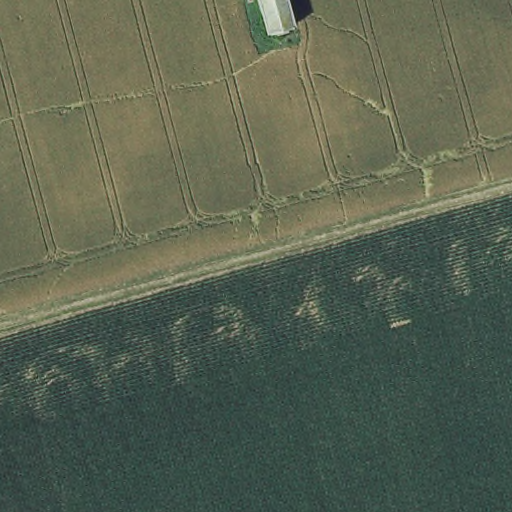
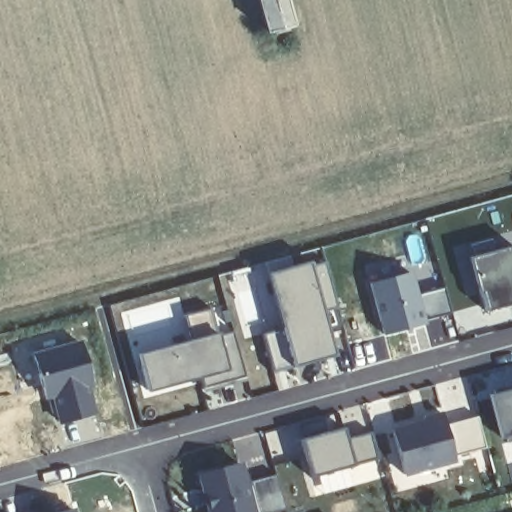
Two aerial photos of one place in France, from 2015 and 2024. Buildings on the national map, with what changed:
unchanged [(289,28),(265,34),(255,0),(281,0),(289,28)]
new [(483,310),(469,257),(512,247),(512,303),(483,310)]
new [(337,354),(275,368),(265,333),(285,329),(270,271),(312,260),(337,354)]
new [(414,267),(420,293),(445,286),(453,319),(384,338),(368,280),(414,267)]
new [(194,338),(186,314),(214,306),(220,332),(233,328),(246,375),(204,386),(200,377),(146,390),(137,353),(194,338)]
new [(80,340),(94,387),(88,388),(95,414),(58,424),(52,398),(44,399),(31,352),(80,340)]
new [(488,395),(512,390),(512,436),(498,440),(488,395)]
new [(484,448),(454,456),(455,462),(403,475),(401,466),(391,428),(422,421),(421,416),(441,412),(445,426),(476,417),(484,448)]
new [(346,427),(347,439),(373,433),(380,457),(310,474),(302,439),(346,427)]
new [(275,474),(284,509),(273,512),(205,512),(195,474),(242,462),(249,482),(275,474)]
new [(74,512),(58,512),(73,508),(74,512)]
new [(47,512),(42,512),(47,510),(47,512)]

